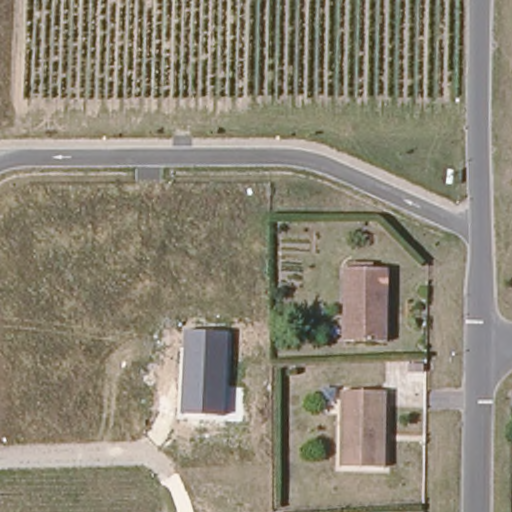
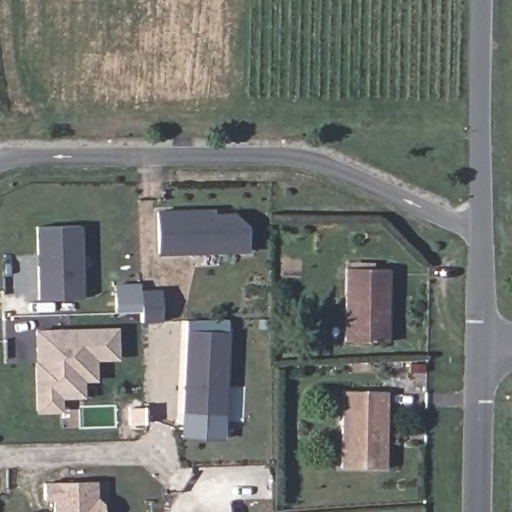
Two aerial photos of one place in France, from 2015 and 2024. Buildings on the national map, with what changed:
new [(156,209),(200,206),(210,206),(210,211),(200,211),(234,210),(246,221),(247,247),(157,251),(156,209)]
new [(83,298),(39,300),(36,226),(80,225),(83,298)]
unchanged [(345,340),(341,265),(384,265),(386,340),(345,340)]
new [(156,290),(159,320),(137,321),(135,290),(156,290)]
new [(85,398),(60,399),(60,412),(35,413),(35,328),(115,327),(115,361),(96,361),(96,379),(86,385),(85,398)]
unchanged [(225,415),(181,415),(185,330),(229,332),(225,415)]
unchanged [(343,468),(340,391),(381,391),(386,466),(343,468)]
new [(55,512),(55,498),(45,498),(45,482),(95,481),(96,512),(55,512)]

